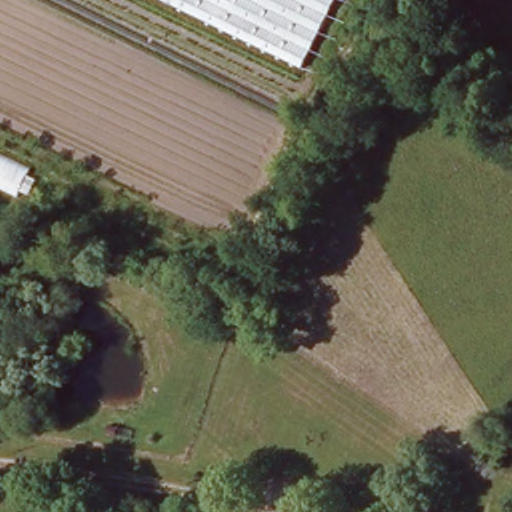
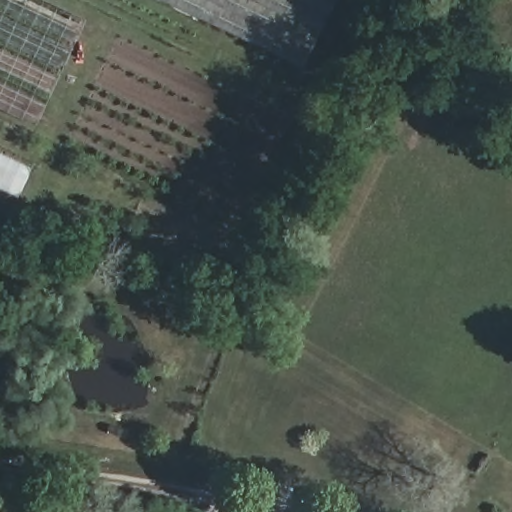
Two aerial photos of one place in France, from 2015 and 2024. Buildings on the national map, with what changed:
new [(36,126),(0,109),(0,0),(46,0),(85,18),(36,126)]
unchanged [(180,0),(329,0),(302,56),(180,0)]
unchanged [(39,179),(28,195),(21,191),(18,197),(0,188),(0,154),(31,168),(30,173),(39,179)]
demolished [(507,512),(487,512),(490,500),(508,506),(507,512)]

